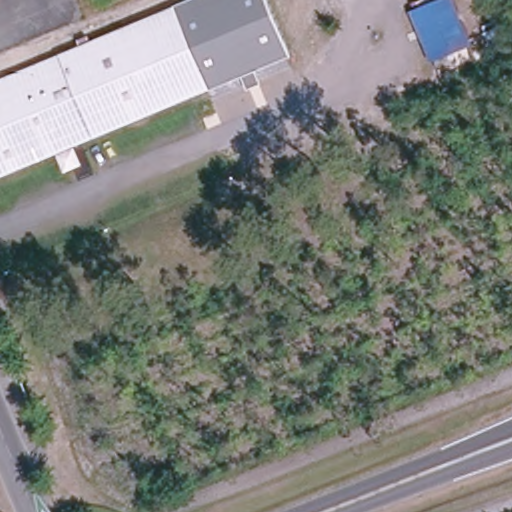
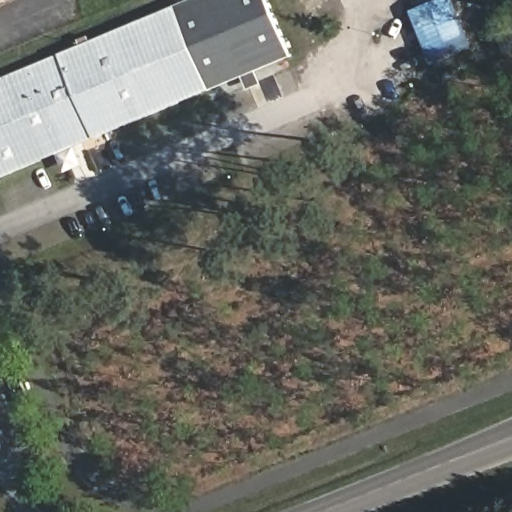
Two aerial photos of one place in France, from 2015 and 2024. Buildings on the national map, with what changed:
unchanged [(191,0),(267,0),(291,57),(256,71),(261,84),(247,90),(241,77),(207,89),(173,7),(191,0)]
unchanged [(434,60),(428,43),(422,30),(416,13),(427,9),(449,0),(451,0),(454,8),(466,37),(469,46),(452,52),(434,60)]
unchanged [(173,7),(207,89),(179,101),(146,19),(173,7)]
unchanged [(0,175),(0,80),(146,19),(179,101),(0,175)]

